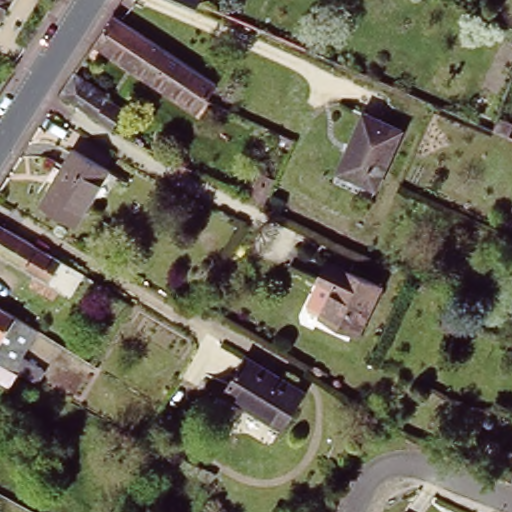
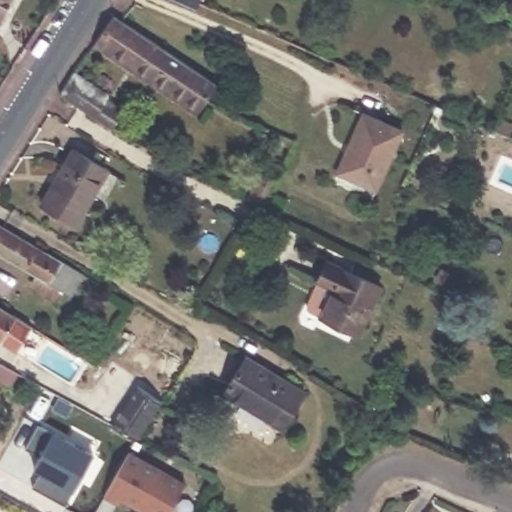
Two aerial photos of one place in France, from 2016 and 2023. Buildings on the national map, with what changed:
unchanged [(0,23),(0,0),(14,0),(0,23)]
unchanged [(195,4),(193,8),(176,0),(197,0),(195,4)]
unchanged [(110,19),(211,88),(201,104),(195,113),(92,44),(110,19)]
unchanged [(75,82),(92,93),(88,98),(122,121),(112,138),(61,104),(75,82)]
unchanged [(335,176),(362,117),(398,133),(372,194),(335,176)]
unchanged [(37,205),(69,152),(103,173),(72,225),(70,225),(37,205)]
unchanged [(252,200),(250,195),(260,173),(275,180),(262,205),(252,200)]
unchanged [(0,261),(0,231),(83,280),(70,302),(0,261)]
unchanged [(310,314),(324,286),(308,279),(317,259),(368,281),(370,285),(349,331),(310,314)]
unchanged [(440,324),(439,323),(442,313),(462,323),(457,333),(440,324)]
unchanged [(5,392),(0,389),(0,316),(32,336),(8,377),(12,379),(5,392)]
unchanged [(279,425),(224,391),(245,355),(300,389),(279,425)]
new [(65,506),(64,506),(32,487),(40,472),(33,468),(40,457),(25,448),(37,425),(93,455),(65,506)]
new [(185,484),(169,512),(147,512),(122,498),(119,505),(103,496),(128,452),(185,484)]

